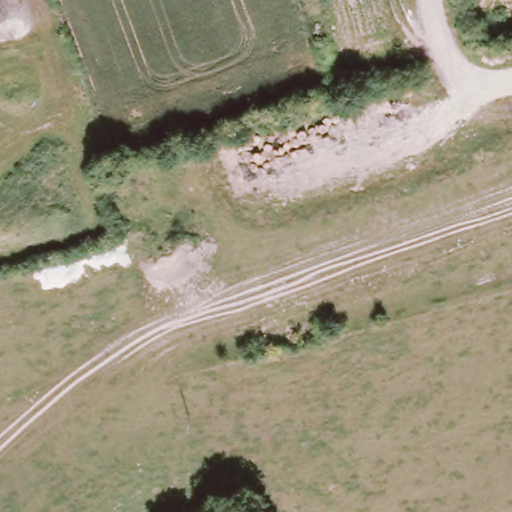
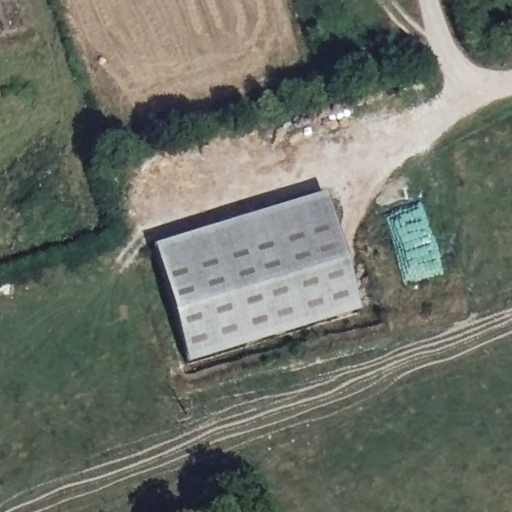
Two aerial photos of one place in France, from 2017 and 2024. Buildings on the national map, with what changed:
new [(360,303),(192,358),(157,244),(328,190),(360,303)]

